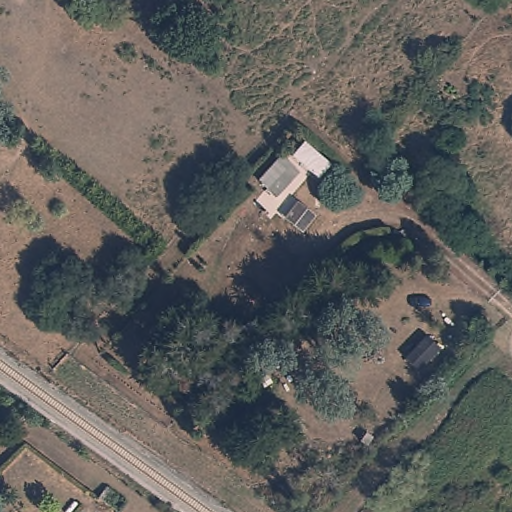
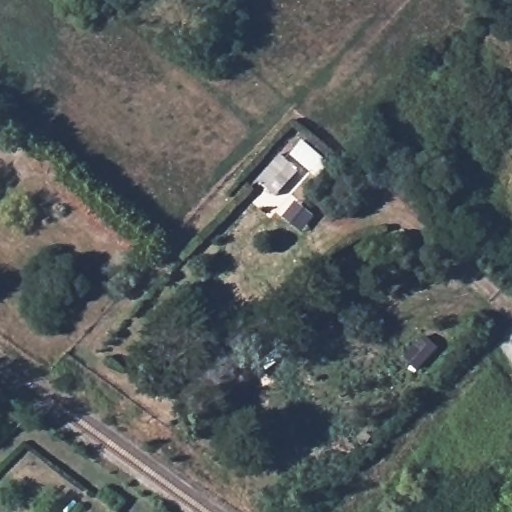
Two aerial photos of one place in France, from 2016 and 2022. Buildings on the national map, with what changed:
unchanged [(94,495),(103,485),(115,493),(106,503),(94,495)]

